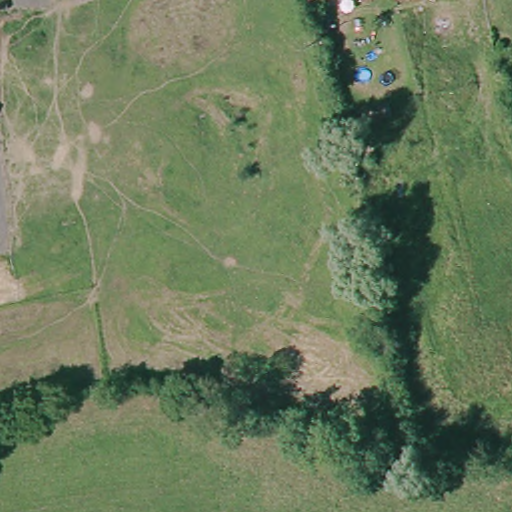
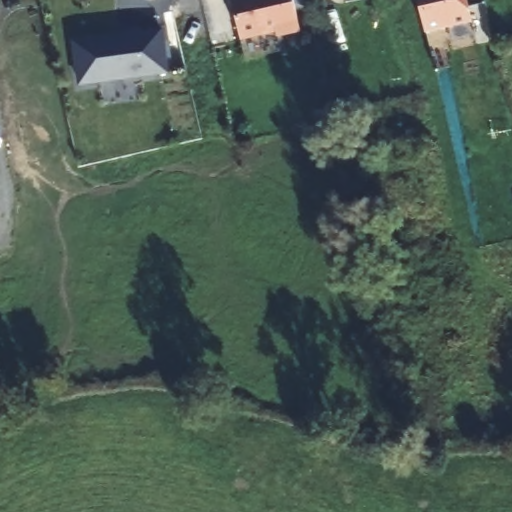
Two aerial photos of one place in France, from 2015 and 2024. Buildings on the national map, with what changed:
new [(278,31),(240,40),(231,0),(292,0),(300,30),(280,37),(278,31)]
new [(325,0),(327,6),(315,8),(313,0),(325,0)]
new [(425,34),(418,0),(467,0),(472,23),(425,34)]
new [(278,32),(283,51),(247,60),(242,41),(278,32)]
new [(100,42),(100,45),(110,44),(110,41),(163,33),(170,74),(82,87),(76,46),(100,42)]

